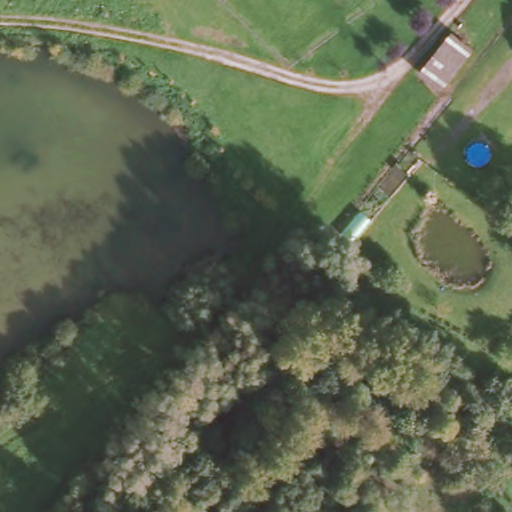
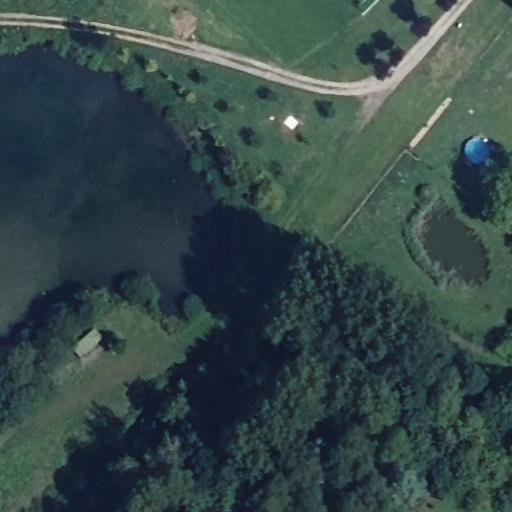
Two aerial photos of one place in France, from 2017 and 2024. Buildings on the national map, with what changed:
unchanged [(448,34),(470,52),(442,88),(420,70),(448,34)]

